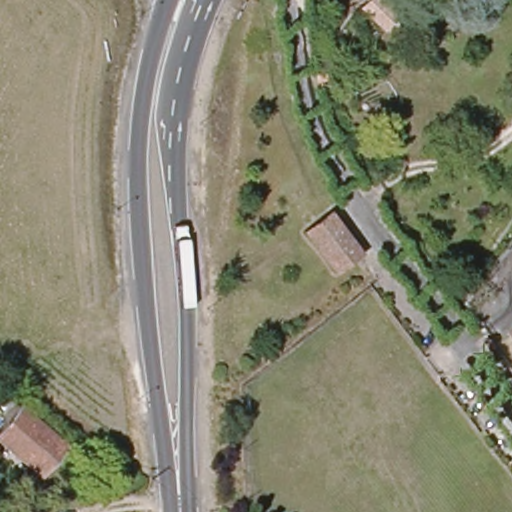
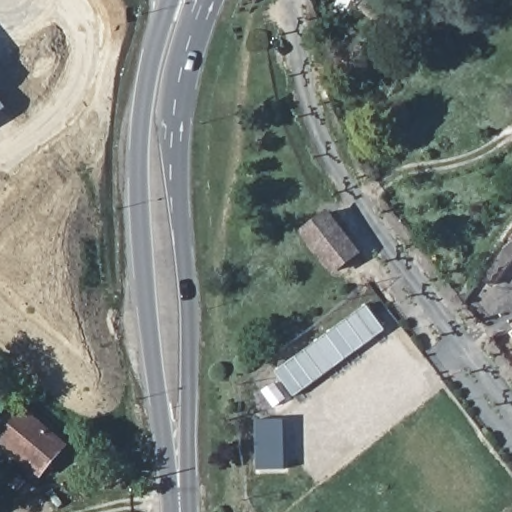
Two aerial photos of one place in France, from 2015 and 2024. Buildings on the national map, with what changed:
unchanged [(359,1),(358,0),(360,0),(359,1)]
new [(0,111),(0,98),(6,106),(0,111)]
unchanged [(354,249),(332,267),(303,227),(325,210),(354,249)]
new [(366,307),(385,332),(294,397),(276,372),(366,307)]
unchanged [(66,441),(39,471),(0,440),(0,422),(16,402),(66,441)]
new [(260,467),(257,436),(262,436),(261,422),(285,419),(291,476),(271,478),(270,466),(260,467)]

